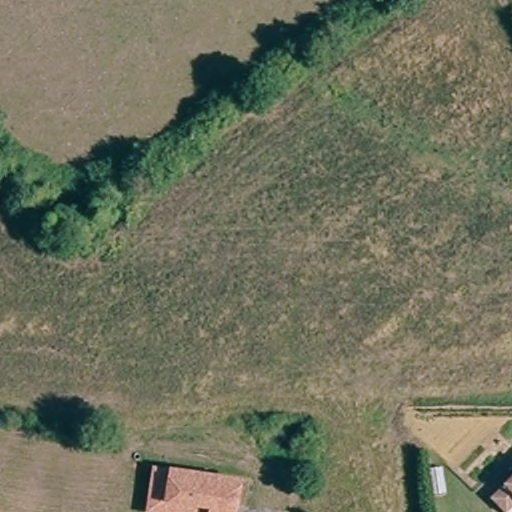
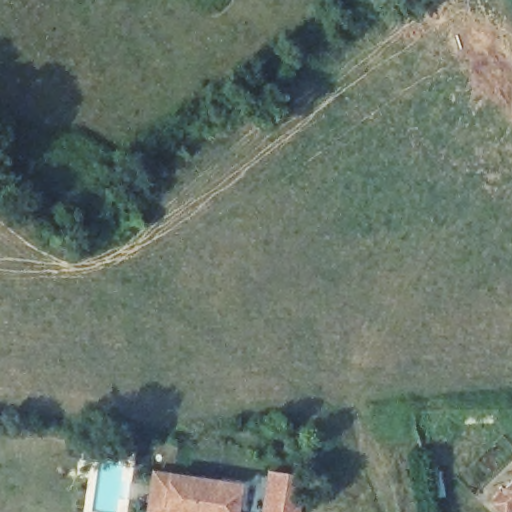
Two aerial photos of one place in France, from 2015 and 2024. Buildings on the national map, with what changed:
new [(266,470),(295,475),(292,497),(301,498),(299,512),(260,512),(266,470)]
unchanged [(239,512),(152,512),(157,476),(174,479),(242,490),(239,512)]
unchanged [(490,499),(512,485),(512,511),(511,512),(498,512),(490,499)]

